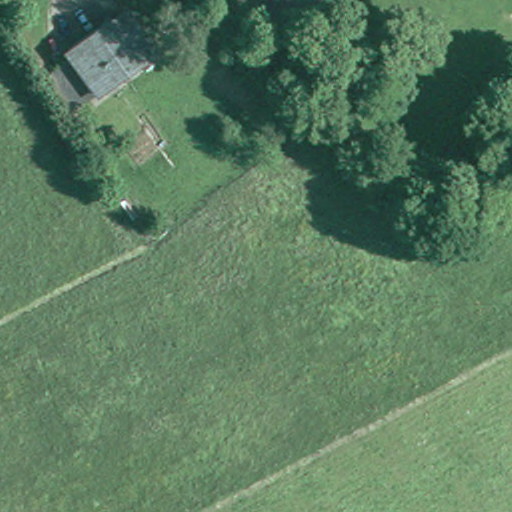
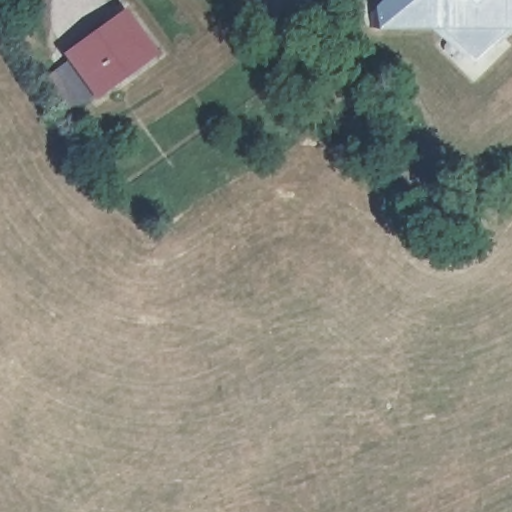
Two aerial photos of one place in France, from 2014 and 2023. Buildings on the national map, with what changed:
new [(512,30),(510,30),(475,60),(438,29),(380,29),(375,5),(380,0),(512,0),(512,30)]
unchanged [(155,56),(98,95),(68,54),(127,13),(155,56)]

